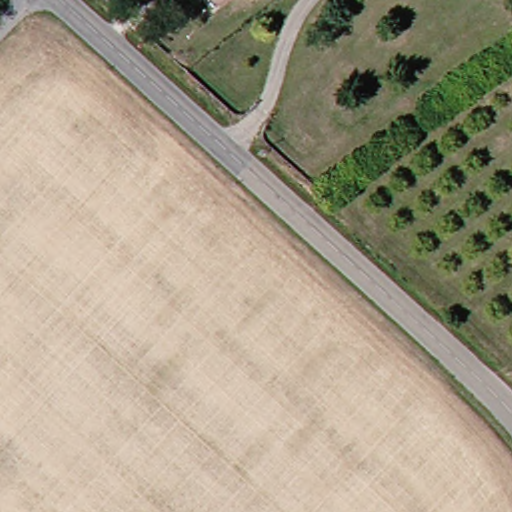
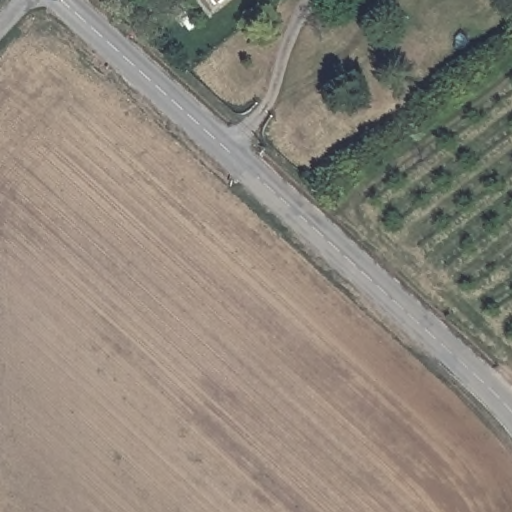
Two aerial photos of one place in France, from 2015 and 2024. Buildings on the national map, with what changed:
unchanged [(211,0),(227,0),(217,7),(211,0)]

